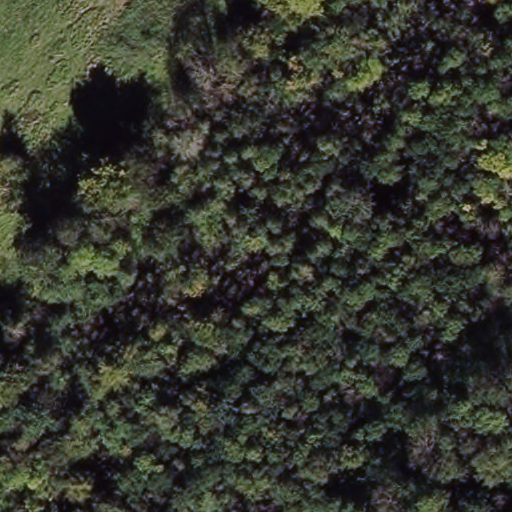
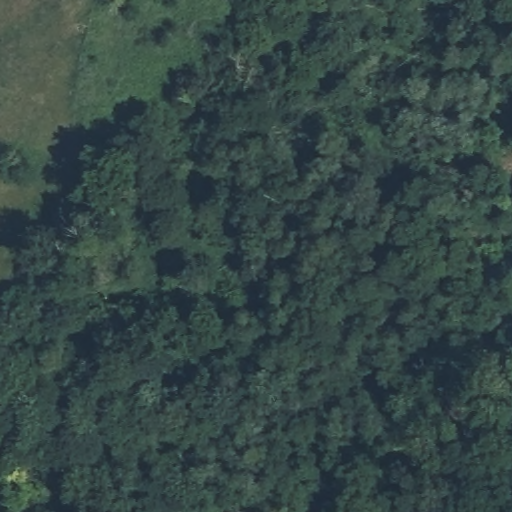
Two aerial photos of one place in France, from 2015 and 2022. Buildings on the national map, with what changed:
[]

